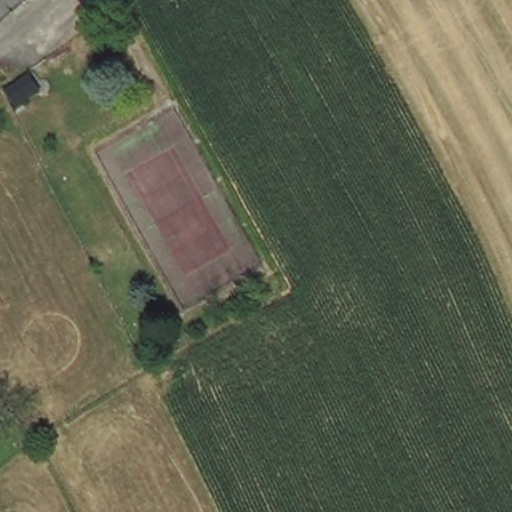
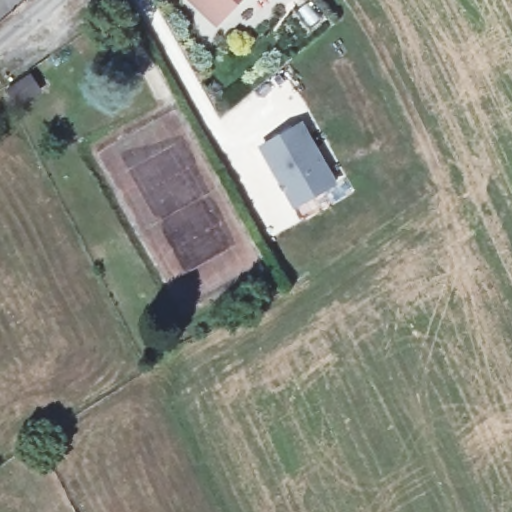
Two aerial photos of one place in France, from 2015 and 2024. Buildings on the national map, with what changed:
new [(188,0),(240,0),(215,26),(188,0)]
unchanged [(7,94),(27,83),(35,99),(16,110),(7,94)]
new [(293,207),(258,145),(300,122),(335,184),(293,207)]

